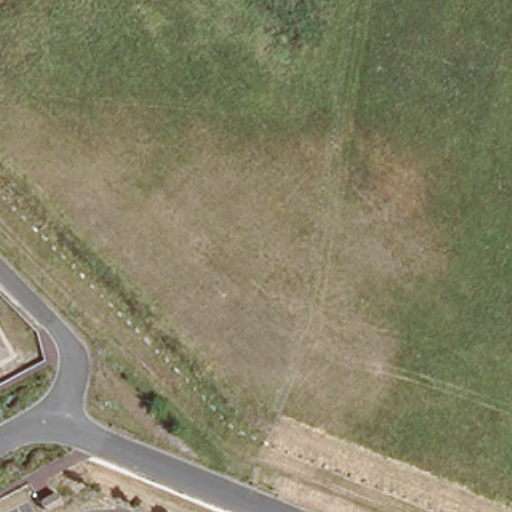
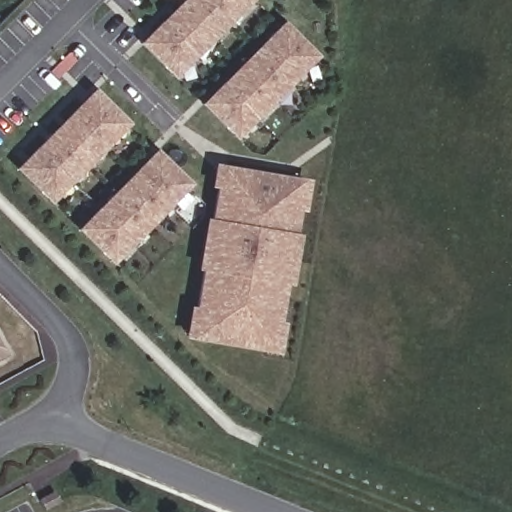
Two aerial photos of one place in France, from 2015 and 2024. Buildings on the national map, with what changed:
new [(176,4),(179,0),(251,0),(173,80),(136,45),(176,4)]
new [(176,4),(172,0),(179,0),(176,4)]
new [(281,21),(317,57),(235,141),(199,105),(281,21)]
new [(13,170),(93,89),(129,124),(49,205),(13,170)]
new [(75,230),(155,150),(191,185),(112,266),(75,230)]
new [(183,340),(189,307),(193,308),(199,271),(195,270),(204,220),(208,221),(213,189),(209,189),(213,164),(309,181),(304,214),(299,213),(295,235),(300,235),(291,287),(286,286),(279,323),(284,324),(279,356),(183,340)]
unchanged [(0,351),(4,358),(0,360),(0,351)]

